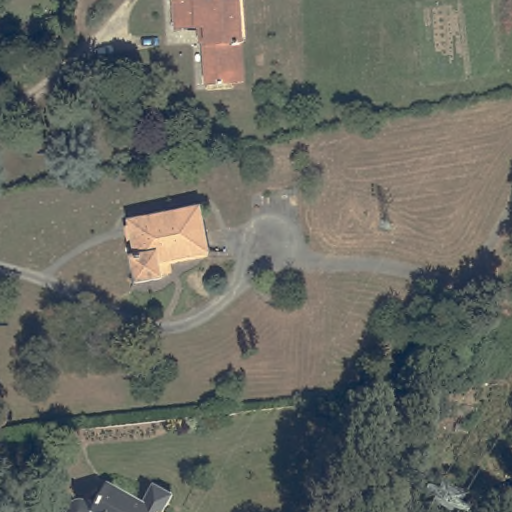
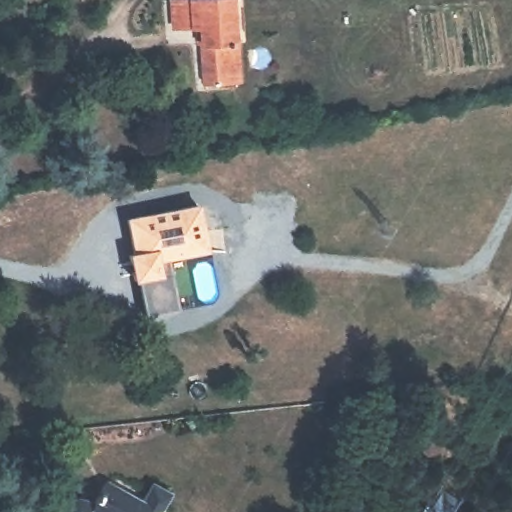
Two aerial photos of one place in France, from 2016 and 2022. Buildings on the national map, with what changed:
unchanged [(245,0),(249,43),(243,44),(246,82),(216,85),(211,29),(186,31),(183,2),(204,0),(245,0)]
unchanged [(136,255),(130,220),(206,205),(215,255),(206,258),(162,266),(166,280),(139,285),(132,255),(136,255)]
unchanged [(64,512),(64,509),(65,507),(66,505),(67,503),(69,501),(70,500),(72,500),(74,499),(76,499),(78,500),(79,500),(80,501),(89,506),(102,484),(136,504),(147,487),(164,498),(155,512),(64,512)]

